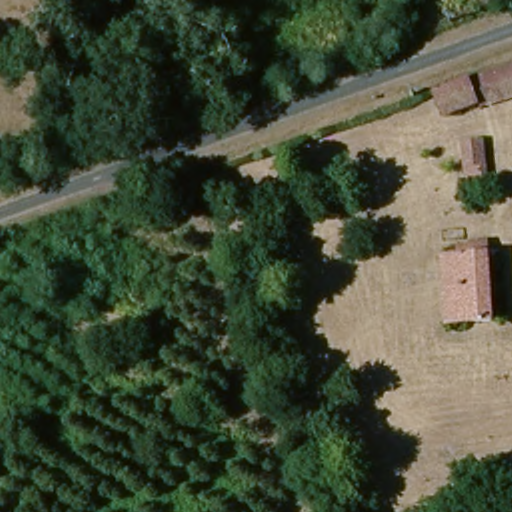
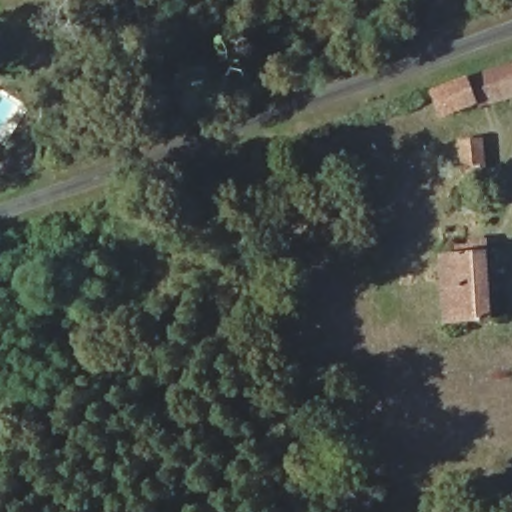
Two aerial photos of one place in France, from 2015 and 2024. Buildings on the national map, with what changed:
unchanged [(512,64),(512,96),(458,114),(452,115),(434,124),(425,94),(442,88),(512,64)]
unchanged [(466,150),(486,146),(490,189),(471,190),(466,150)]
unchanged [(442,257),(453,257),(453,247),(476,244),(477,254),(490,254),(494,322),(446,325),(442,257)]

